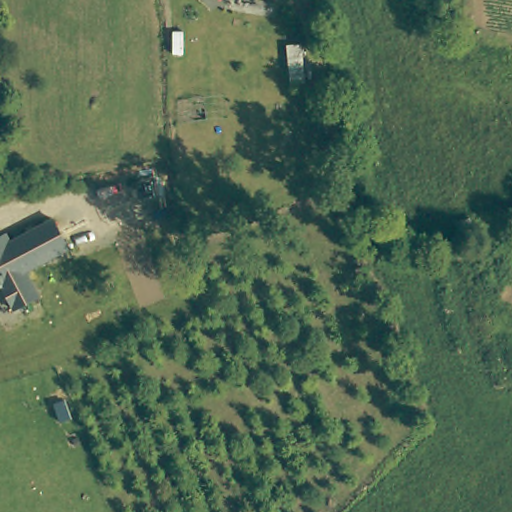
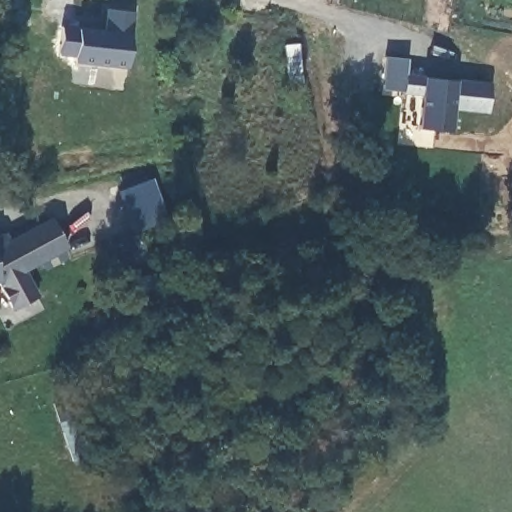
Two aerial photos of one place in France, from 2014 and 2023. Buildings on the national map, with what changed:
new [(64,31),(108,37),(111,15),(135,18),(127,73),(75,65),(75,60),(60,57),(64,31)]
new [(410,60),(408,76),(444,80),(455,81),(493,85),(490,113),(454,109),(451,133),(420,130),(424,95),(384,91),(387,58),(410,60)]
new [(151,184),(160,211),(141,218),(131,191),(151,184)]
unchanged [(10,240),(51,218),(69,250),(26,272),(40,299),(12,312),(0,287),(0,235),(5,232),(10,240)]

